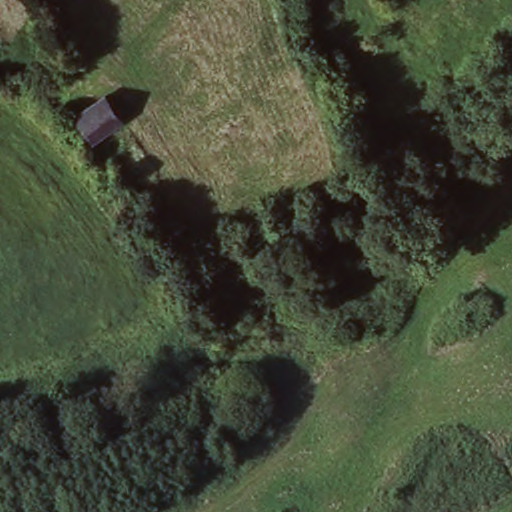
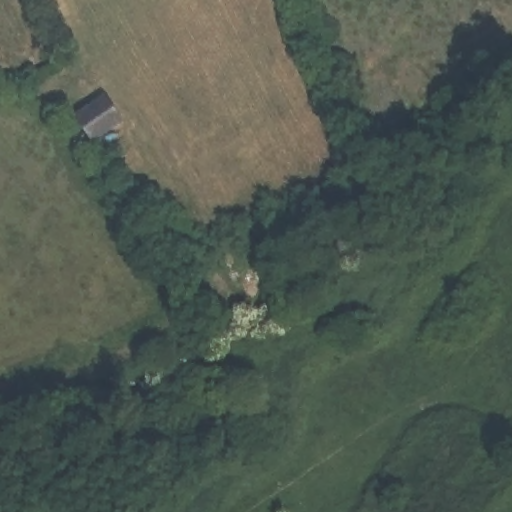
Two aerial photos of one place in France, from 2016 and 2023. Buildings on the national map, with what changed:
unchanged [(92,90),(107,116),(80,134),(64,107),(92,90)]

